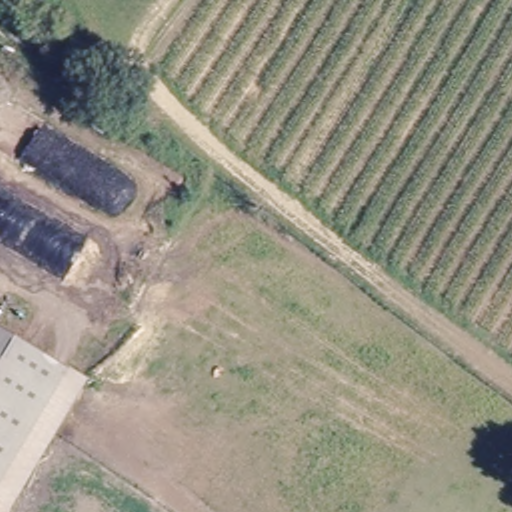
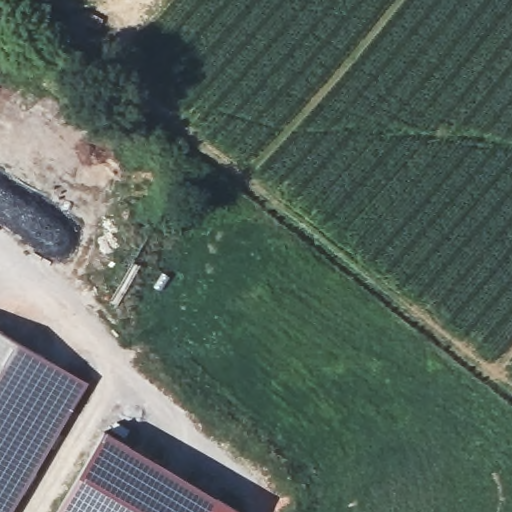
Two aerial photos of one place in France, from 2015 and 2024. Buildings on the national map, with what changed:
unchanged [(12,512),(0,512),(0,334),(87,383),(12,512)]
new [(83,464),(107,426),(147,452),(247,509),(245,512),(55,512),(83,464)]

